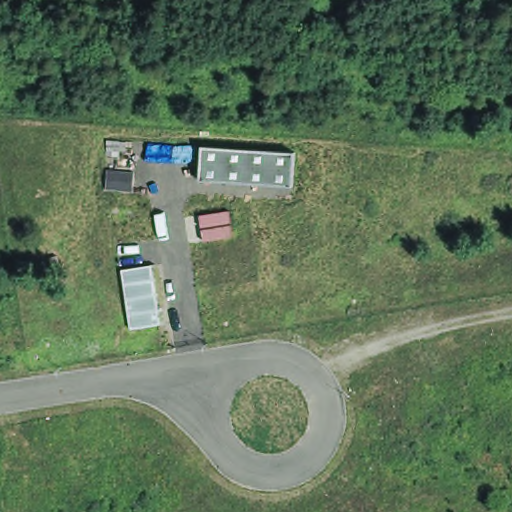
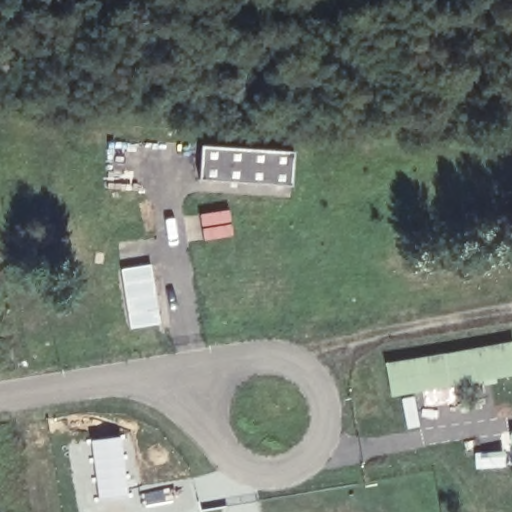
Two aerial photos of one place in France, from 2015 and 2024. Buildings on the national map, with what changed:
unchanged [(295,154),(292,187),(201,181),(202,147),(295,154)]
new [(151,266),(161,323),(132,328),(123,270),(151,266)]
new [(512,345),(512,373),(388,392),(384,362),(512,342),(512,345)]
new [(122,435),(129,496),(99,500),(90,438),(122,435)]

